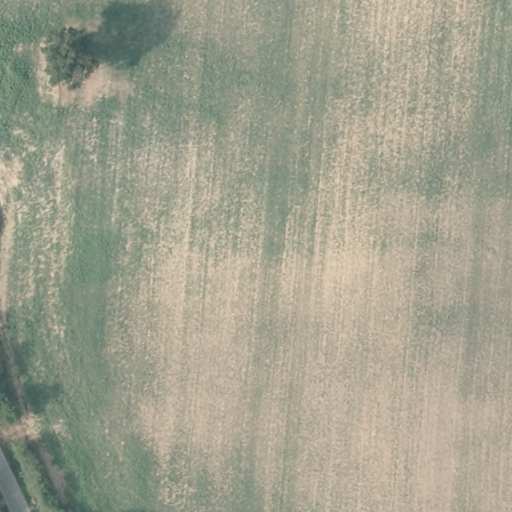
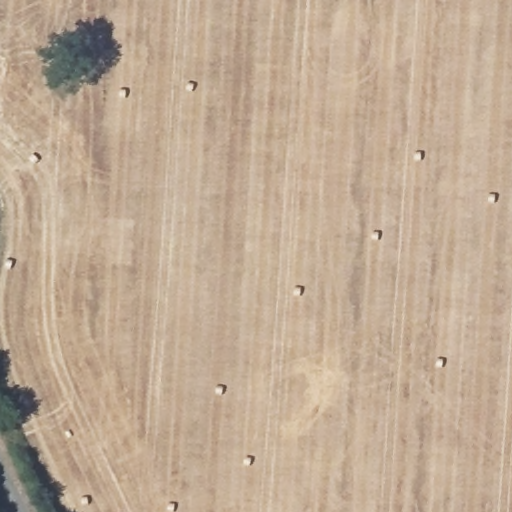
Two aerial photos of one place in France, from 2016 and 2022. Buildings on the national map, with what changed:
[]

